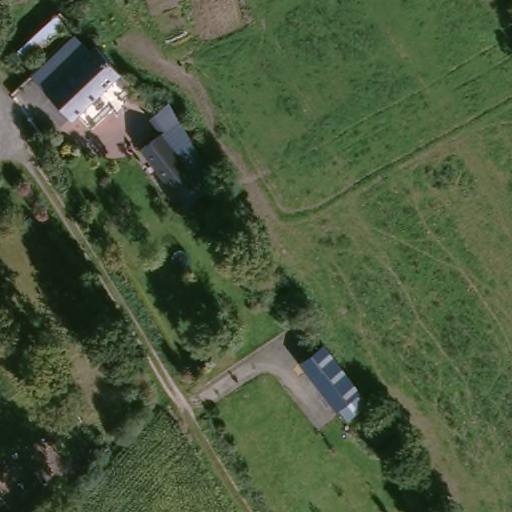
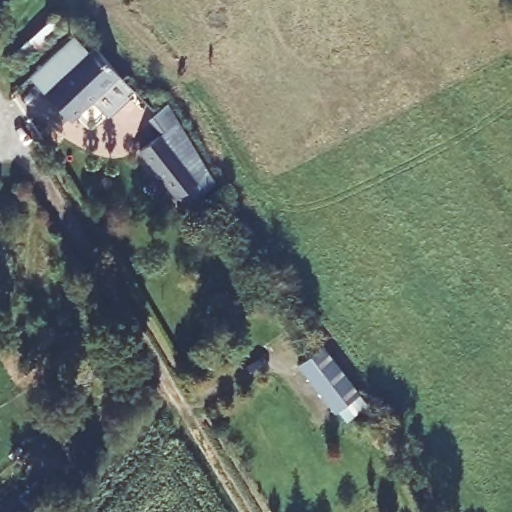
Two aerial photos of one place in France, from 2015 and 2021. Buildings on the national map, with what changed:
unchanged [(97,45),(123,73),(73,119),(33,76),(75,35),(90,50),(97,45)]
unchanged [(207,191),(202,195),(185,207),(142,151),(165,134),(207,191)]
unchanged [(325,343),(367,402),(342,421),(297,366),(325,343)]

